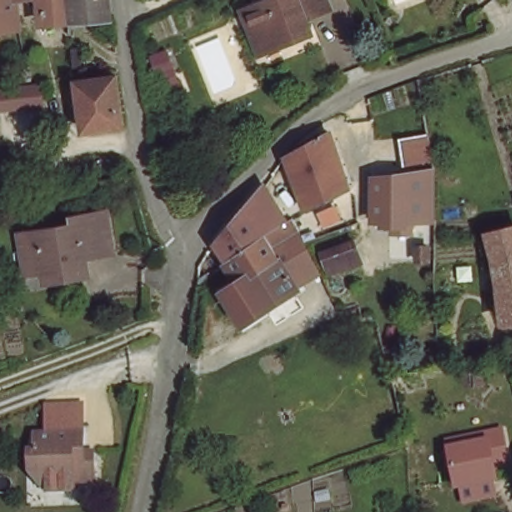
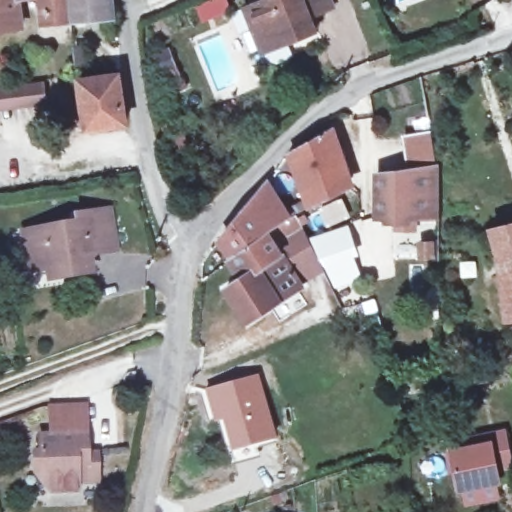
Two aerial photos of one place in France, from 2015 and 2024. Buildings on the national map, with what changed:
unchanged [(23,0),(26,21),(0,26),(0,0),(23,0)]
unchanged [(48,0),(74,0),(117,0),(117,10),(75,15),(50,16),(48,0)]
unchanged [(327,9),(304,17),(310,31),(258,51),(248,27),(242,9),(247,6),(264,0),(324,0),(327,9)]
unchanged [(119,75),(126,124),(86,130),(79,80),(119,75)]
unchanged [(42,85),(44,105),(0,110),(0,90),(42,85)]
unchanged [(402,139),(432,132),(438,165),(440,219),(376,222),(376,170),(407,166),(402,139)]
unchanged [(352,142),(335,150),(352,195),(310,213),(289,162),(349,134),(352,142)]
unchanged [(217,243),(245,209),(262,187),(285,224),(284,225),(263,236),(265,239),(229,262),(217,243)]
unchanged [(45,275),(27,277),(21,237),(75,229),(75,221),(108,216),(115,255),(82,260),(85,279),(64,282),(47,285),(45,275)]
unchanged [(284,225),(285,224),(292,219),(297,231),(298,231),(271,249),(297,291),(242,326),(222,293),(240,280),(229,262),(265,239),(263,236),(284,225)]
unchanged [(505,315),(501,275),(502,275),(498,253),(500,252),(495,232),(512,228),(512,321),(506,322),(505,315)]
unchanged [(303,229),(325,275),(297,291),(271,249),(298,231),(303,229)]
unchanged [(368,260),(333,275),(322,246),(358,235),(368,260)]
unchanged [(468,382),(467,369),(485,368),(485,381),(468,382)]
new [(258,373),(275,438),(227,451),(219,421),(211,423),(202,388),(258,373)]
unchanged [(83,460),(93,459),(93,477),(73,477),(73,486),(45,486),(45,467),(30,468),(30,447),(37,447),(36,430),(82,430),(83,460)]
unchanged [(465,455),(463,448),(499,440),(506,475),(492,478),(494,490),(455,498),(447,460),(465,455)]

